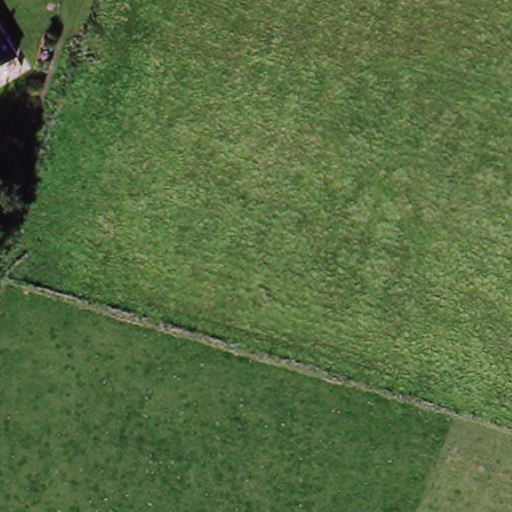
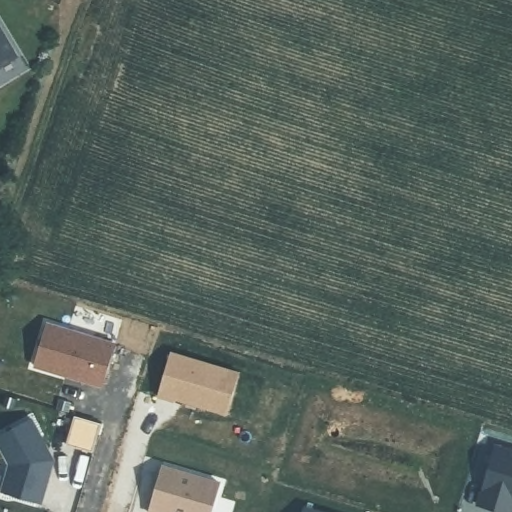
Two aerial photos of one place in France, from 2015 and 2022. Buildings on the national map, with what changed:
unchanged [(0,68),(0,30),(17,58),(0,68)]
new [(47,323),(116,344),(104,386),(34,366),(47,323)]
new [(48,451),(45,453),(48,460),(54,461),(47,486),(42,489),(37,504),(2,494),(10,466),(0,446),(0,437),(32,420),(48,451)]
new [(512,453),(512,508),(511,512),(496,512),(476,506),(494,447),(512,453)]
new [(214,512),(152,512),(165,469),(222,486),(214,512)]
new [(332,512),(307,512),(309,504),(332,512)]

